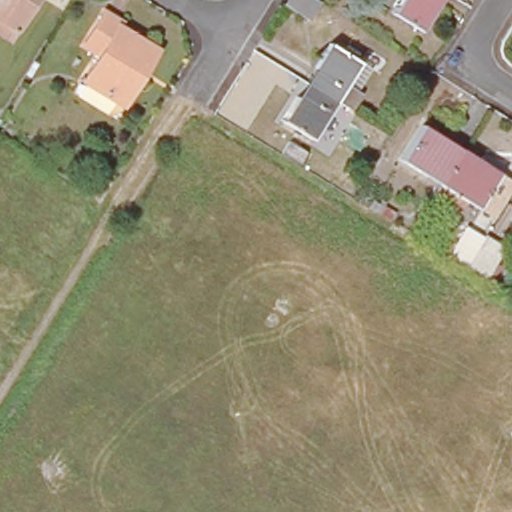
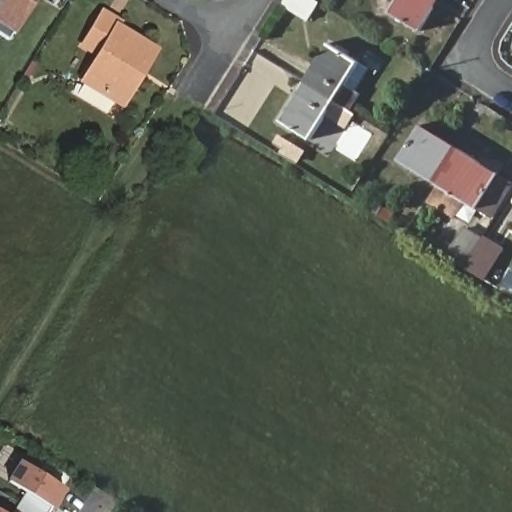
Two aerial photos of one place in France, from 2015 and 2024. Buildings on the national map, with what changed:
unchanged [(0,0),(31,0),(14,28),(9,36),(0,31),(0,0)]
unchanged [(277,0),(309,0),(313,2),(302,21),(275,3),(277,0)]
unchanged [(418,32),(387,12),(395,0),(438,0),(418,32)]
unchanged [(112,103),(79,82),(95,56),(81,47),(101,14),(117,25),(115,30),(153,54),(140,74),(120,107),(112,103)]
unchanged [(342,110),(328,102),(298,82),(322,44),(352,62),(361,68),(348,90),(353,93),(342,110)]
unchanged [(305,141),(273,122),(298,82),(328,102),(305,141)]
unchanged [(397,166),(419,131),(457,154),(435,188),(397,166)]
unchanged [(278,152),(268,146),(274,138),(285,145),(278,152)]
unchanged [(435,188),(457,154),(496,178),(475,212),(460,204),(450,220),(425,203),(435,188)]
unchanged [(371,200),(394,214),(390,222),(366,207),(371,200)]
unchanged [(482,283),(462,271),(446,262),(465,230),(481,241),(502,252),(482,283)]
new [(15,512),(26,492),(6,481),(20,461),(67,489),(53,512),(15,512)]
new [(0,512),(0,510),(3,512),(0,512)]

